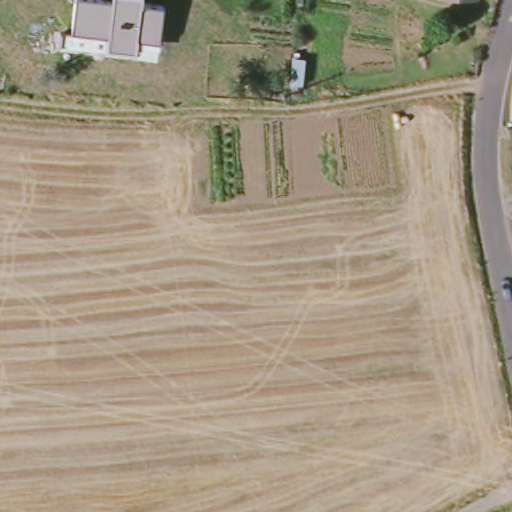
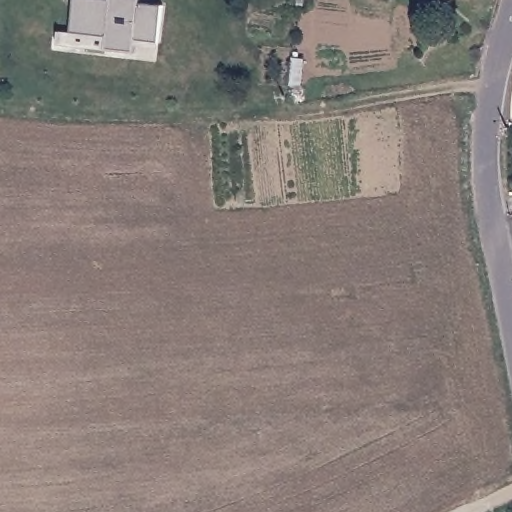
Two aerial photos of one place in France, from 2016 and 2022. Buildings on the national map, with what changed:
unchanged [(112,0),(141,0),(141,3),(163,6),(160,42),(137,40),(136,52),(59,45),(61,32),(73,33),(76,0),(104,0),(112,1),(112,0)]
unchanged [(292,56),(308,57),(306,85),(292,85),(292,56)]

